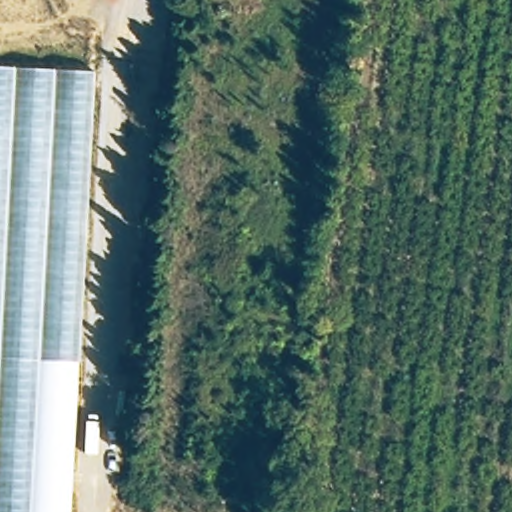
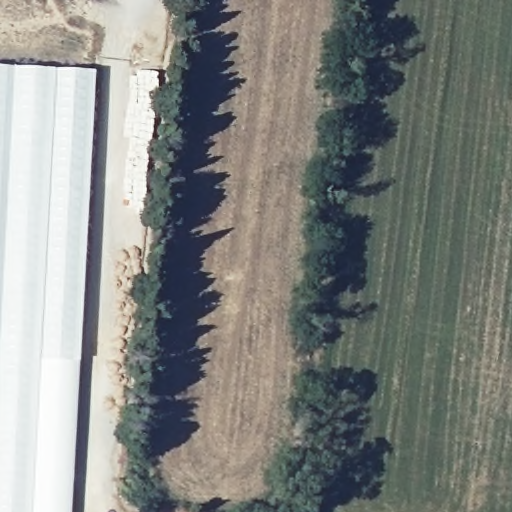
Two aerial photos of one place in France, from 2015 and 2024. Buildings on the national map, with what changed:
unchanged [(94,70),(73,512),(0,512),(0,66),(94,70)]

